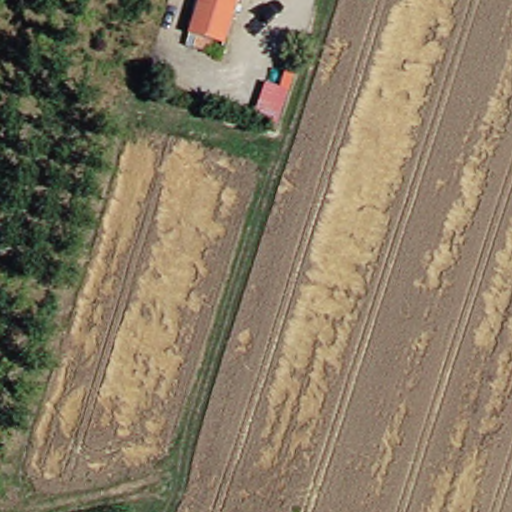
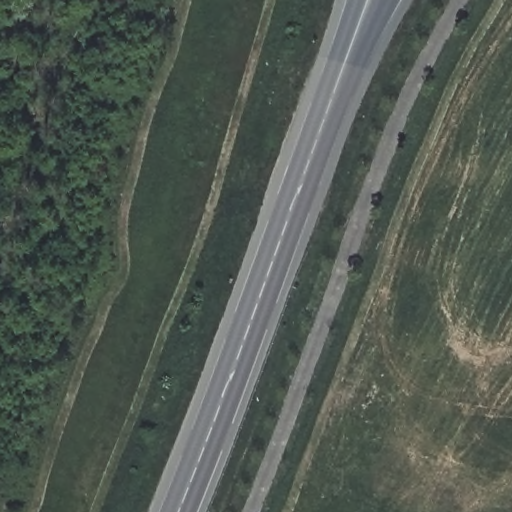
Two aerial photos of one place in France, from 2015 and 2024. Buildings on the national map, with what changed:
demolished [(196,47),(200,36),(192,33),(202,0),(240,0),(223,56),(196,47)]

